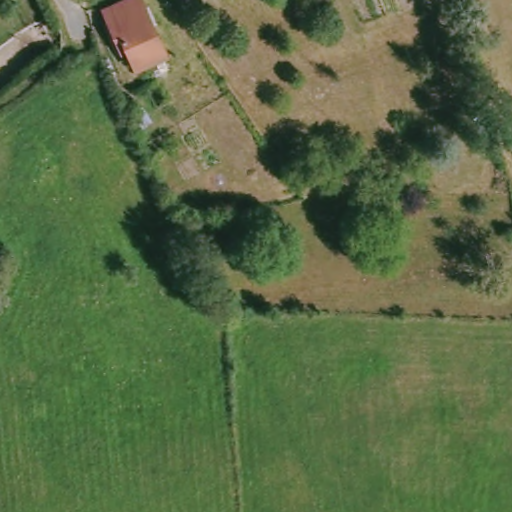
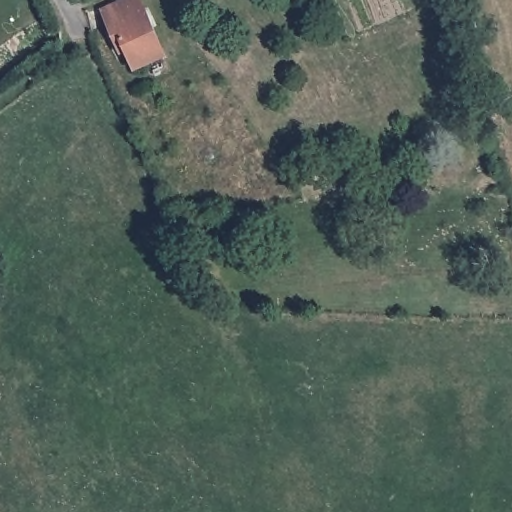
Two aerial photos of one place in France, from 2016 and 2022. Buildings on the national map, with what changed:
unchanged [(118,0),(139,0),(168,45),(139,64),(128,45),(123,49),(99,12),(118,0)]

